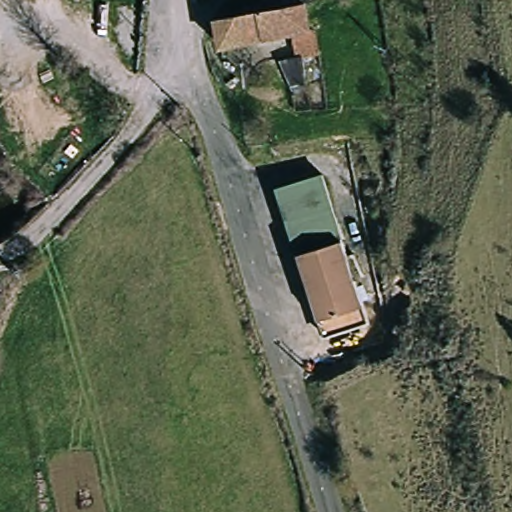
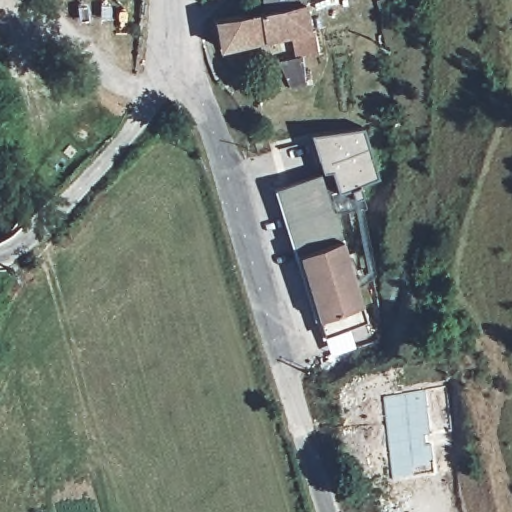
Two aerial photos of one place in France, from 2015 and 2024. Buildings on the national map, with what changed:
unchanged [(253,6),(269,5),(268,0),(301,0),(306,29),(311,28),(316,53),(295,57),(289,32),(261,38),(253,6)]
unchanged [(228,45),(223,10),(253,6),(261,38),(228,45)]
unchanged [(274,66),(273,62),(295,57),(301,85),(282,90),(274,66)]
new [(328,171),(324,172),(323,170),(310,132),(364,127),(380,179),(360,185),(364,196),(354,199),(351,189),(338,193),(333,193),(328,171)]
unchanged [(312,324),(282,180),(328,171),(359,315),(312,324)]
new [(392,477),(382,393),(426,388),(447,386),(453,430),(431,432),(435,472),(392,477)]

